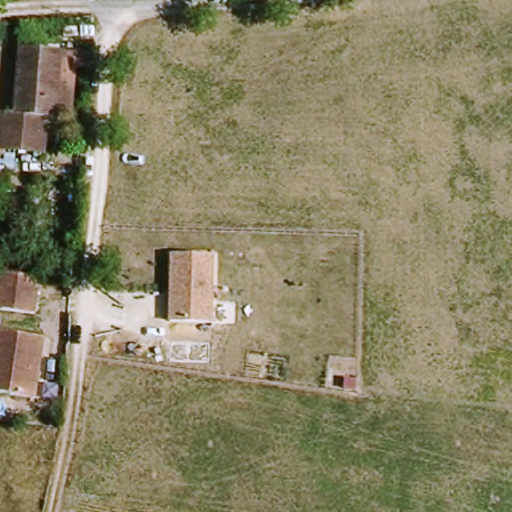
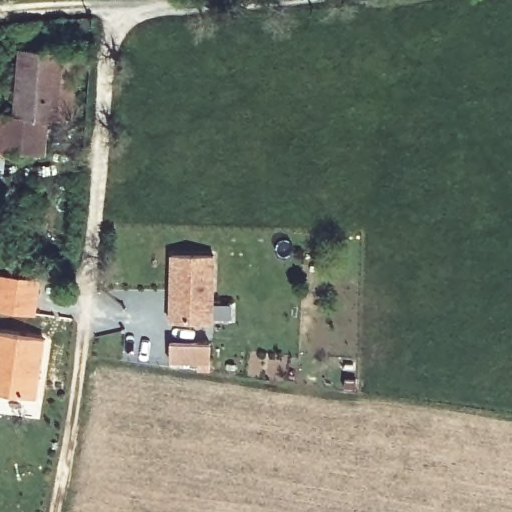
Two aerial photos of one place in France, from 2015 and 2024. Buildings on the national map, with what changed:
unchanged [(0,114),(10,116),(15,48),(64,52),(59,117),(47,120),(45,154),(15,153),(10,205),(0,203),(0,114)]
unchanged [(213,323),(170,321),(172,256),(213,256),(213,323)]
unchanged [(35,316),(0,311),(0,276),(39,281),(35,316)]
unchanged [(0,390),(0,332),(43,340),(33,396),(0,390)]
new [(169,344),(209,345),(208,365),(169,363),(169,344)]

